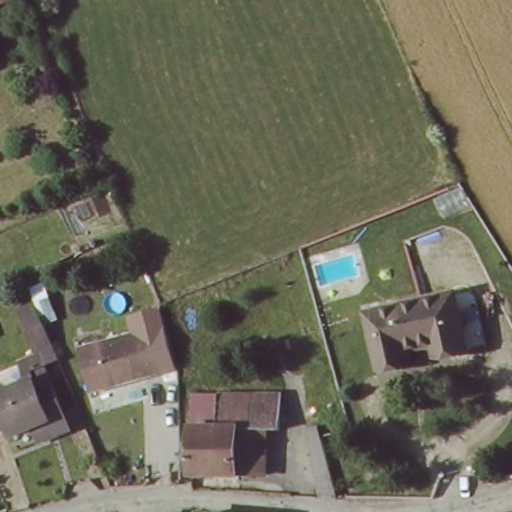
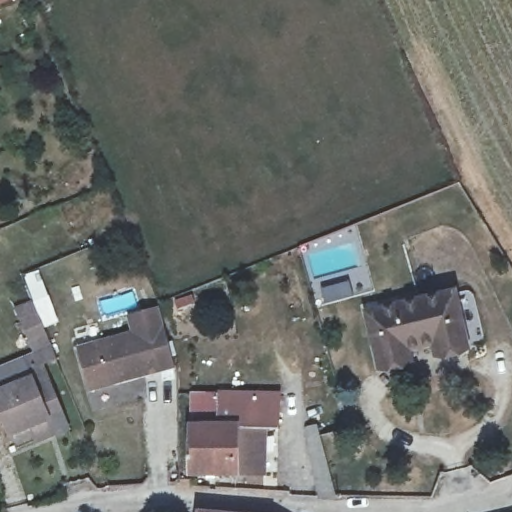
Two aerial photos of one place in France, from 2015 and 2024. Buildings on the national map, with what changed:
unchanged [(0,411),(0,389),(25,380),(17,361),(36,352),(16,302),(32,294),(57,360),(43,368),(67,414),(12,435),(0,411)]
unchanged [(361,318),(455,295),(468,355),(440,360),(437,351),(409,356),(413,368),(375,377),(361,318)]
unchanged [(136,341),(140,349),(154,344),(164,369),(99,397),(85,363),(136,341)]
unchanged [(286,388),(288,418),(275,421),(275,432),(205,427),(202,398),(203,397),(286,388)]
unchanged [(301,429),(316,424),(319,430),(337,500),(320,499),(301,429)]
unchanged [(275,432),(277,464),(209,471),(207,455),(205,427),(275,432)]

